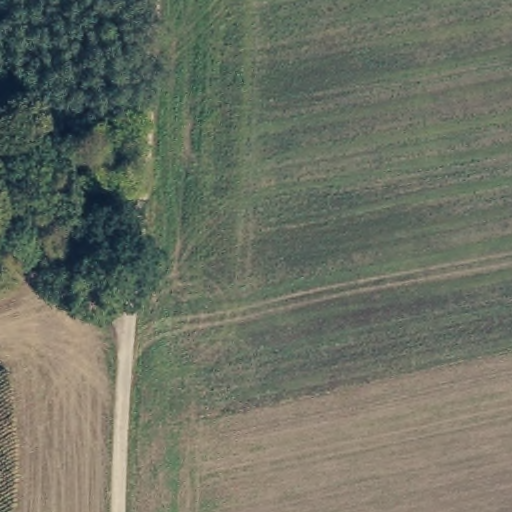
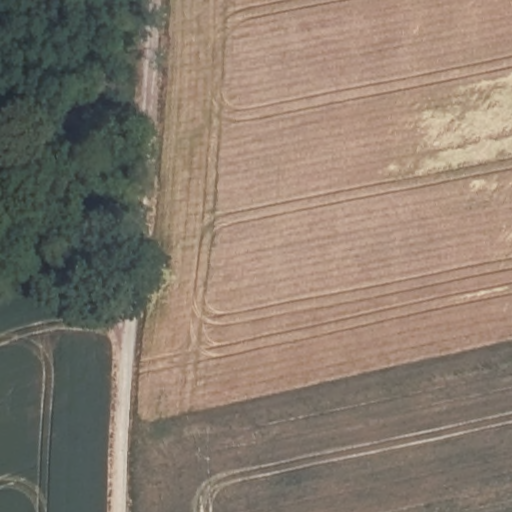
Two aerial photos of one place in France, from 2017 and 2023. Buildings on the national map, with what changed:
unchanged [(72,144),(104,145),(105,181),(73,182),(72,144)]

